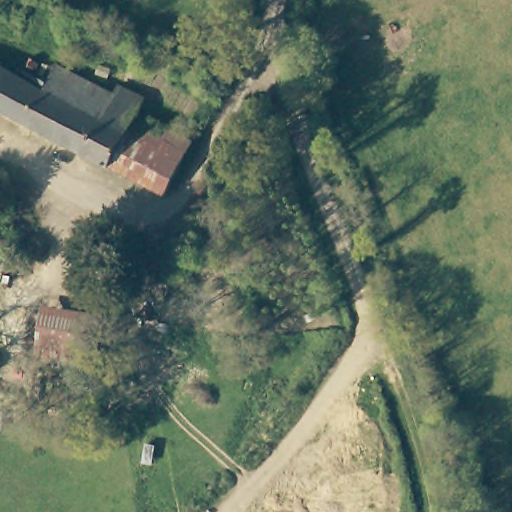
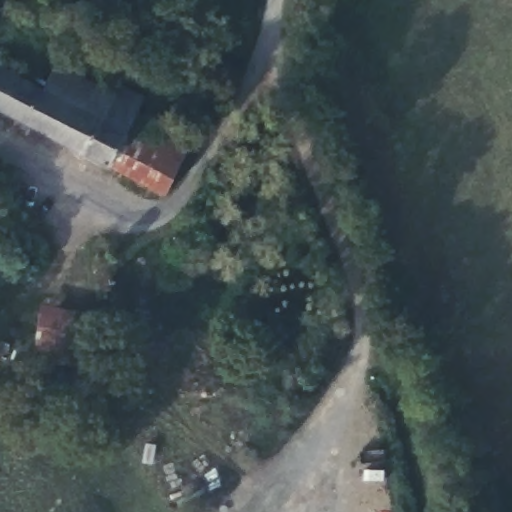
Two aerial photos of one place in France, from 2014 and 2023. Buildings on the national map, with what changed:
unchanged [(56,63),(113,93),(119,83),(142,96),(134,112),(192,141),(166,193),(0,110),(0,67),(43,88),(56,63)]
unchanged [(109,319),(102,362),(38,353),(46,307),(109,319)]

